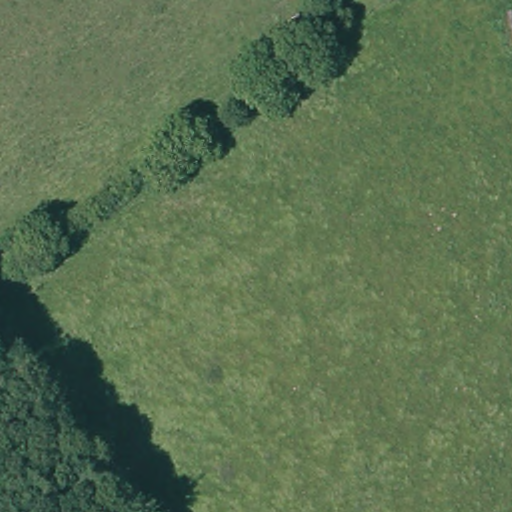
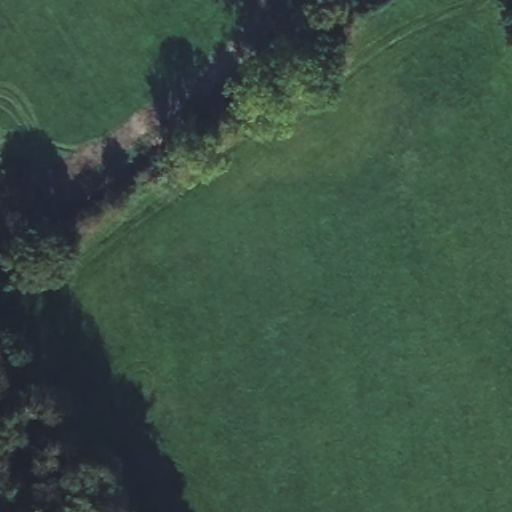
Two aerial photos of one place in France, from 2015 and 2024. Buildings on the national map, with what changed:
unchanged [(512,13),(512,27),(509,14),(512,13)]

